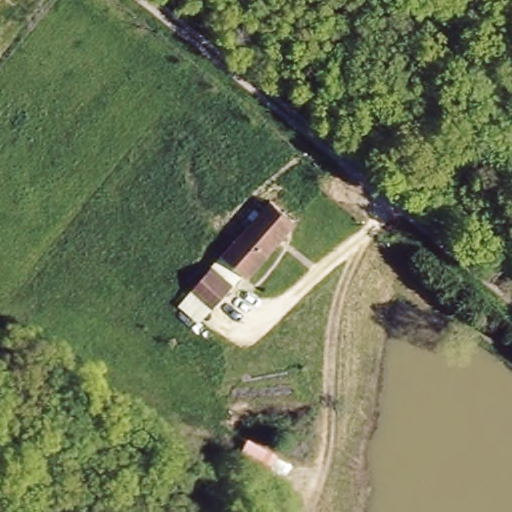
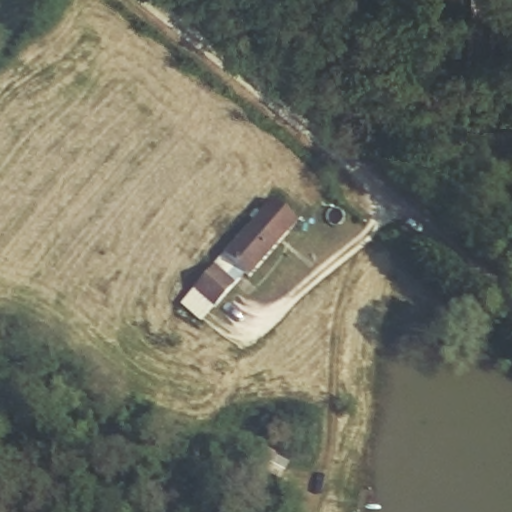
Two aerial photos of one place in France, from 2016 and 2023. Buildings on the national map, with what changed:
unchanged [(270,201),(293,222),(248,275),(225,254),(270,201)]
unchanged [(211,265),(232,282),(210,306),(192,289),(211,265)]

